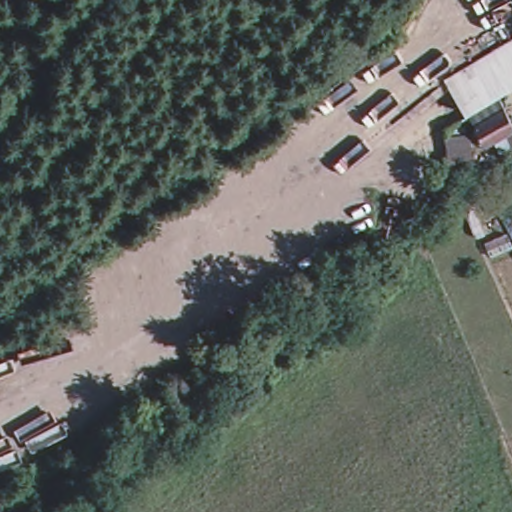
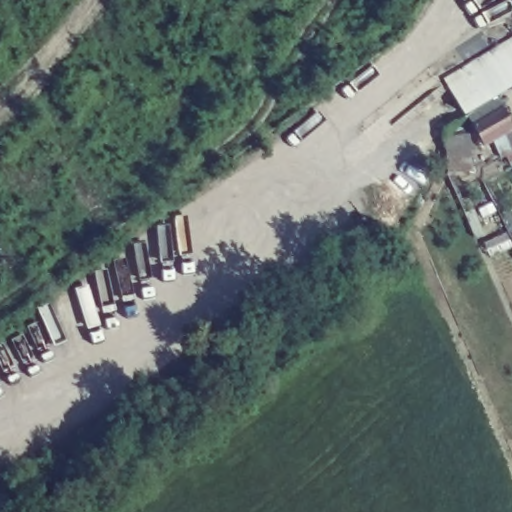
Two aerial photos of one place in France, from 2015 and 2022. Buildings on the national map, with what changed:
unchanged [(512,40),(512,91),(468,118),(444,76),(512,40)]
unchanged [(512,133),(478,149),(470,130),(503,114),(512,133)]

